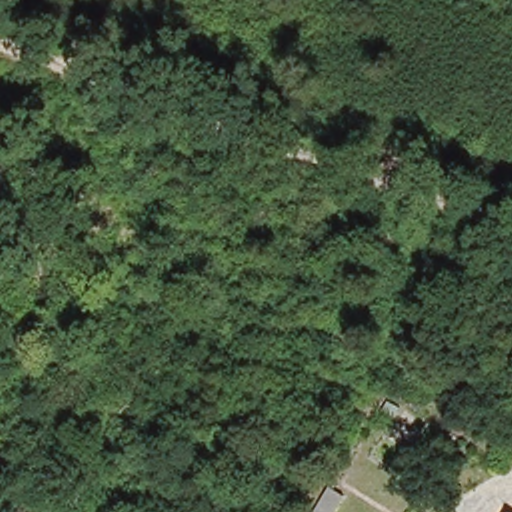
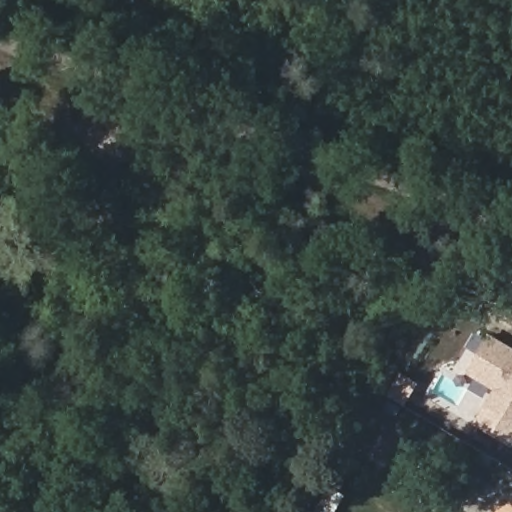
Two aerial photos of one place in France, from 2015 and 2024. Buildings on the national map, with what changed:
new [(512,353),(512,443),(509,447),(472,425),(492,390),(464,373),(485,337),(512,353)]
unchanged [(316,512),(329,489),(340,497),(331,512),(316,512)]

